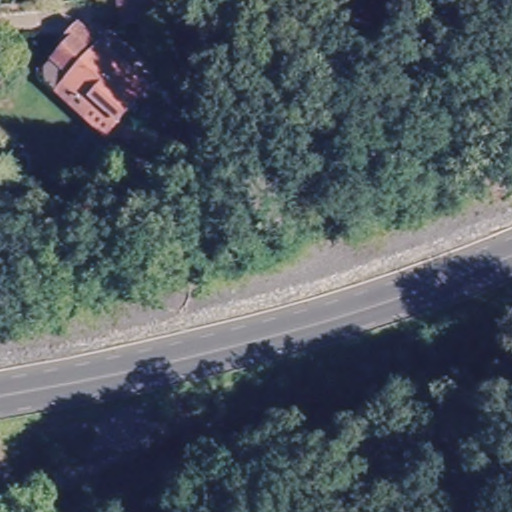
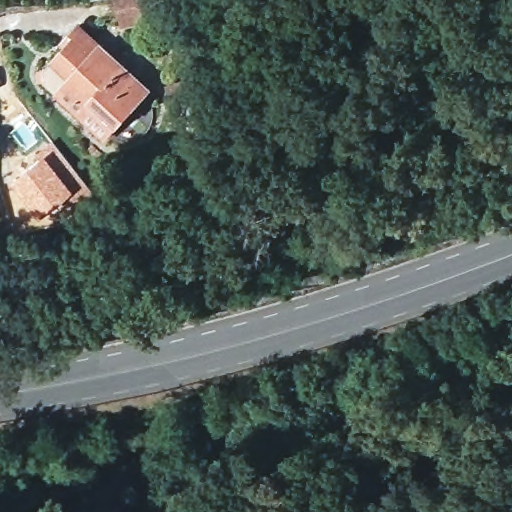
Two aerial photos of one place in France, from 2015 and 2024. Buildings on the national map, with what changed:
unchanged [(124,2),(137,0),(166,0),(173,24),(129,32),(124,33),(118,4),(124,2)]
unchanged [(92,109),(85,117),(46,82),(46,70),(68,46),(64,42),(78,26),(101,47),(122,66),(149,90),(119,122),(114,129),(92,109)]
new [(53,145),(84,182),(35,216),(8,180),(53,145)]

